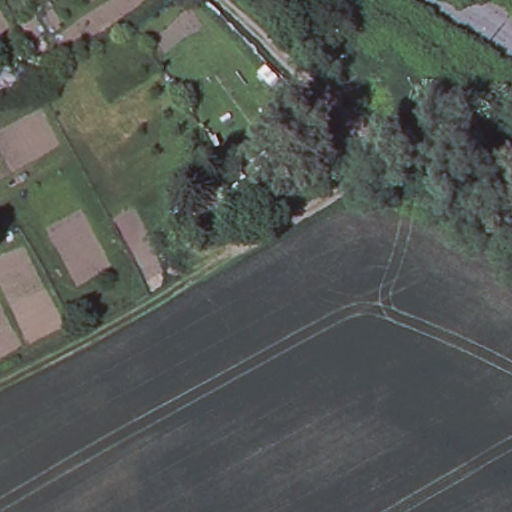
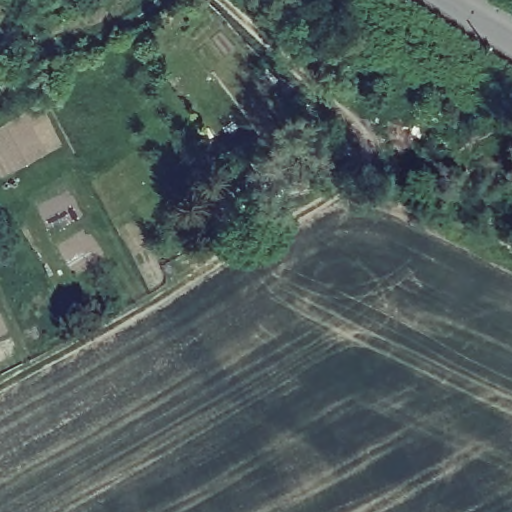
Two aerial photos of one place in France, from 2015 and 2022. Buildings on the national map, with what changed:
unchanged [(192,177),(203,190),(219,180),(215,175),(233,165),(262,210),(241,225),(235,219),(224,225),(213,213),(195,222),(172,187),(192,177)]

